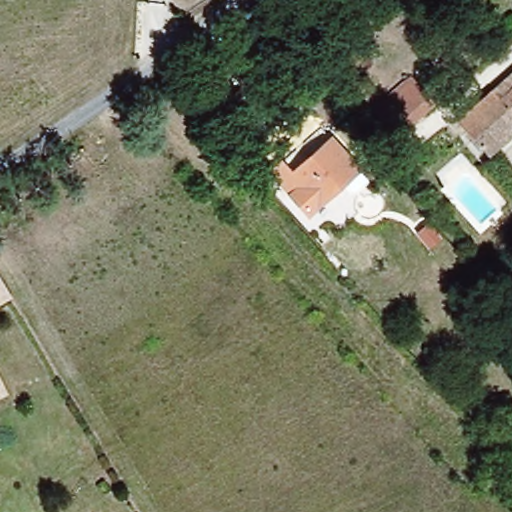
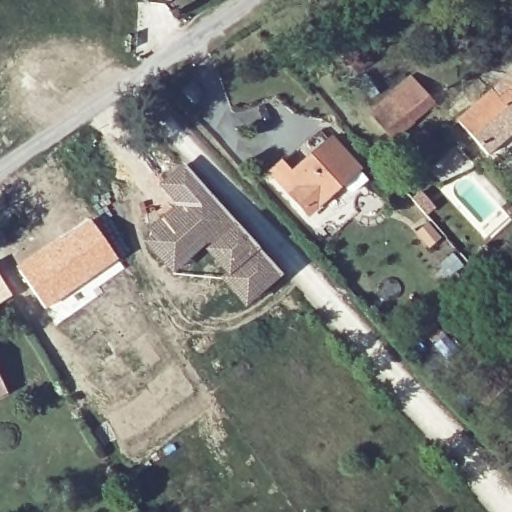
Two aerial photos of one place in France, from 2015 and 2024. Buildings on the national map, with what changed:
new [(392,141),(368,112),(412,76),(425,91),(418,96),(431,110),(392,141)]
unchanged [(457,122),(492,88),(498,96),(512,85),(512,129),(483,154),(457,122)]
unchanged [(365,170),(312,214),(276,170),(291,159),(300,169),(337,137),(365,170)]
new [(172,204),(156,182),(182,160),(260,249),(226,277),(202,249),(172,275),(146,245),(137,228),(172,204)]
new [(97,288),(100,293),(55,325),(45,311),(16,265),(90,217),(120,260),(100,278),(104,283),(97,288)]
new [(226,277),(260,249),(283,275),(246,308),(222,280),(226,277)]
unchanged [(13,296),(0,303),(0,276),(13,296)]
unchanged [(7,394),(0,397),(0,380),(7,394)]

